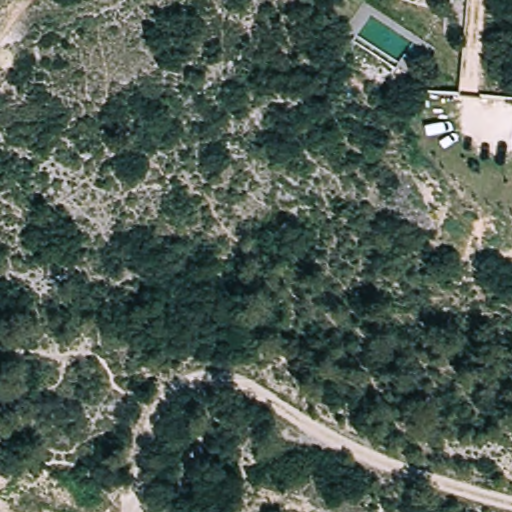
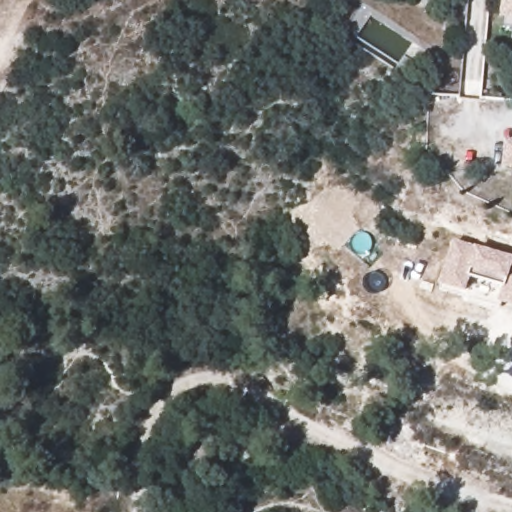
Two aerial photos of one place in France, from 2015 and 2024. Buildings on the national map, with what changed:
new [(512,28),(504,27),(505,16),(506,0),(512,0),(512,28)]
new [(512,253),(512,305),(502,301),(467,294),(437,286),(452,237),(475,242),(512,253)]

